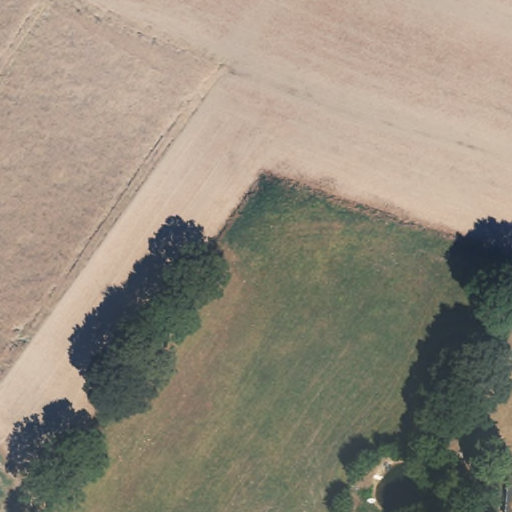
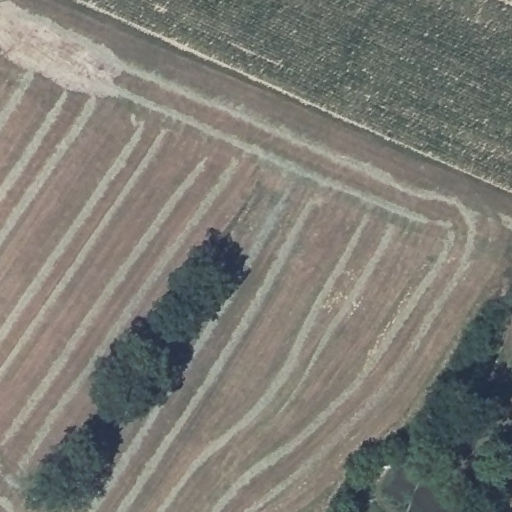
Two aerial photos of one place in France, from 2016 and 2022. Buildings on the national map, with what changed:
unchanged [(512,512),(506,512),(507,501),(496,502),(499,465),(512,466),(512,512)]

